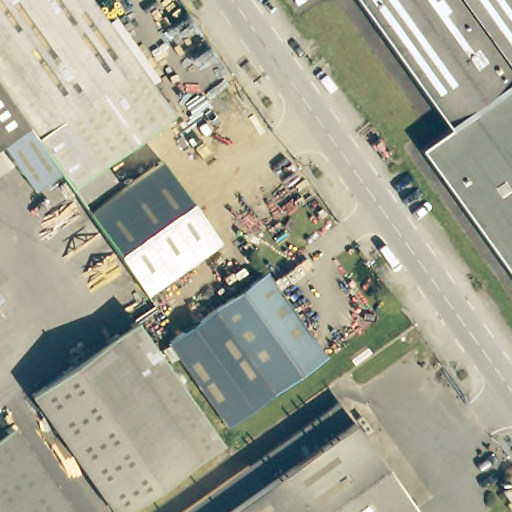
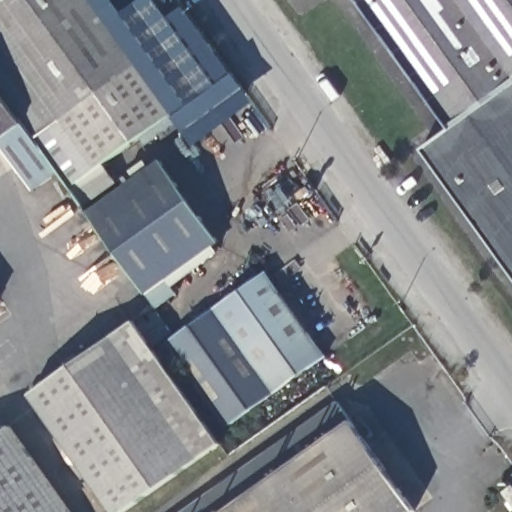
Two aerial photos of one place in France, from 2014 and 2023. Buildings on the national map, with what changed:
unchanged [(63,191),(53,177),(0,103),(0,0),(80,0),(166,119),(96,168),(108,186),(76,210),(63,191)]
new [(124,14),(143,0),(159,0),(171,18),(188,6),(255,102),(194,145),(179,125),(150,145),(143,135),(166,119),(80,0),(114,0),(124,14)]
unchanged [(358,0),(512,0),(512,84),(449,129),(358,0)]
unchanged [(419,150),(449,129),(512,84),(512,281),(419,150)]
unchanged [(27,196),(0,159),(0,103),(53,177),(27,196)]
unchanged [(201,231),(215,250),(141,302),(128,283),(81,216),(154,164),(201,231)]
unchanged [(264,270),(325,355),(224,425),(166,340),(264,270)]
unchanged [(34,397),(29,390),(132,319),(136,326),(34,397)]
unchanged [(115,512),(112,512),(34,397),(136,326),(151,345),(218,440),(115,512)]
unchanged [(346,424),(220,512),(179,512),(332,405),(346,424)]
unchanged [(220,512),(346,424),(412,512),(220,512)]
unchanged [(70,512),(0,512),(0,434),(11,427),(70,512)]
unchanged [(506,479),(512,489),(512,501),(508,503),(496,485),(506,479)]

